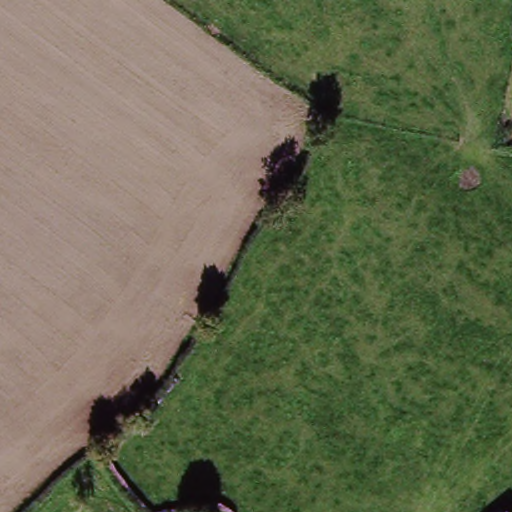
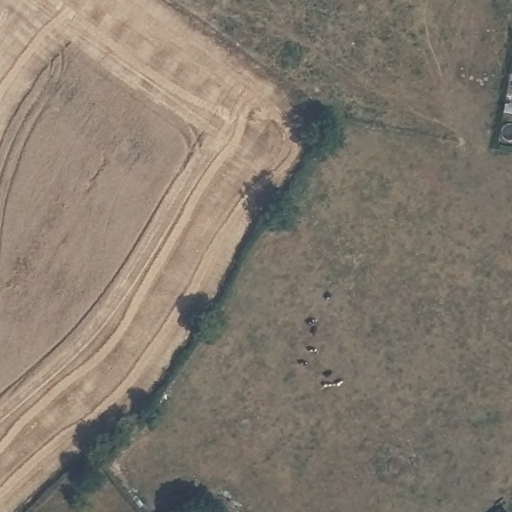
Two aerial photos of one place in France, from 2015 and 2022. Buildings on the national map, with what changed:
[]

